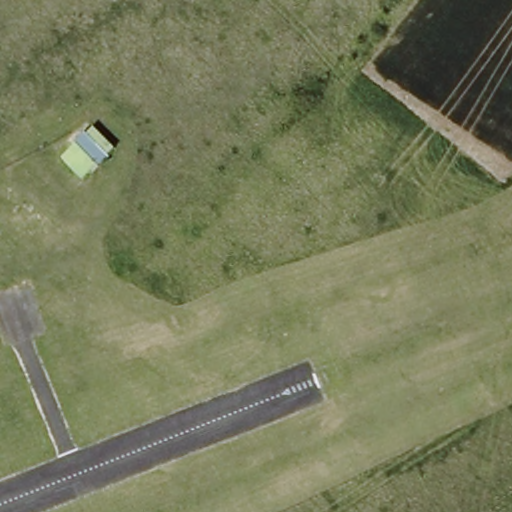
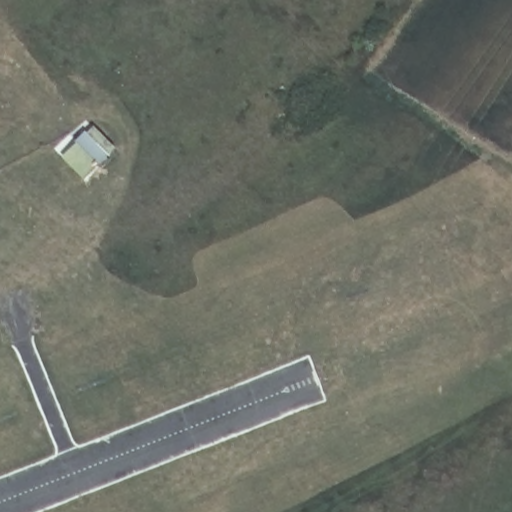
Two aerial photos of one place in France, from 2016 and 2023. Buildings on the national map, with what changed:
unchanged [(108,155),(92,169),(66,146),(83,129),(108,155)]

